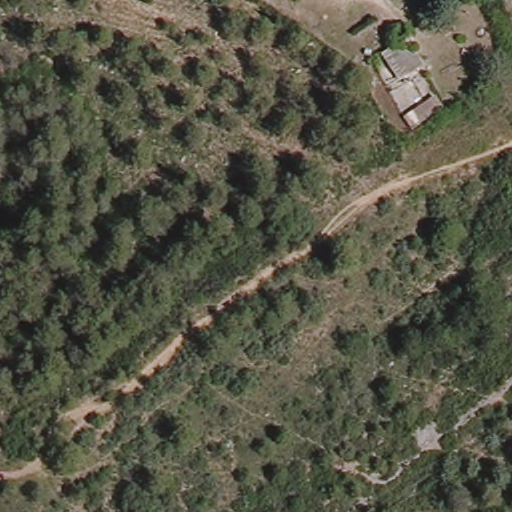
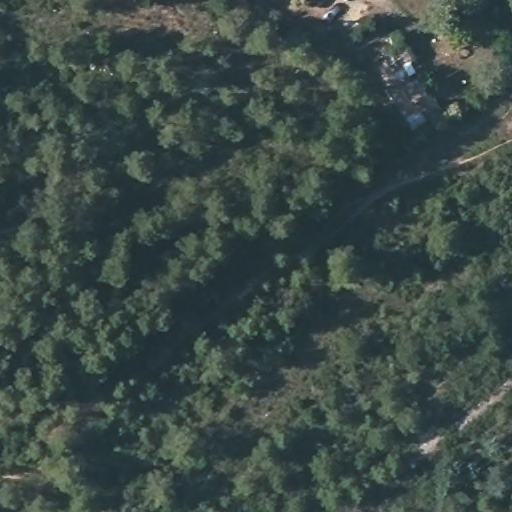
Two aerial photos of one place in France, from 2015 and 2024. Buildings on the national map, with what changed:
unchanged [(435,64),(410,80),(397,58),(420,42),(435,64)]
unchanged [(454,110),(424,129),(404,97),(434,77),(454,110)]

